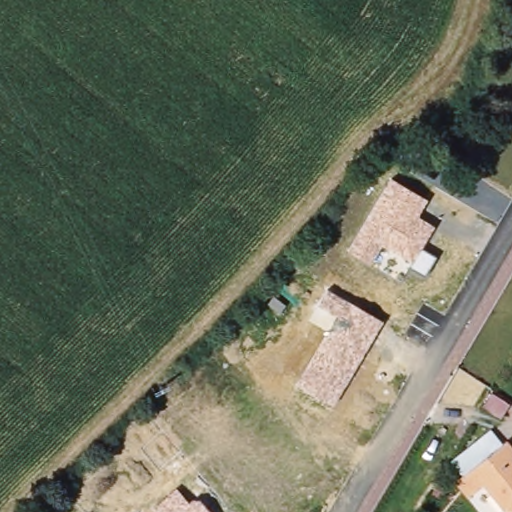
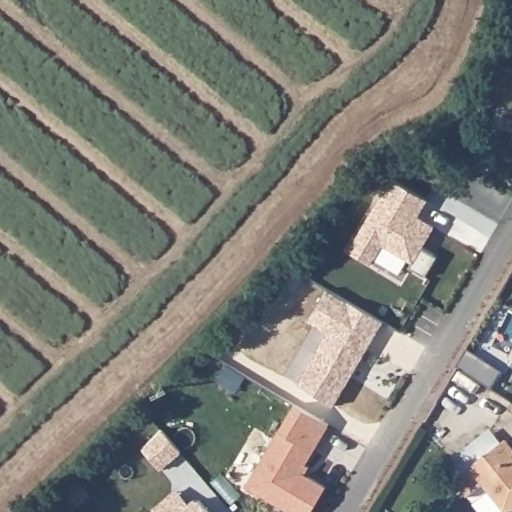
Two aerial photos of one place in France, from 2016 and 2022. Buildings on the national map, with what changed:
unchanged [(349,251),(392,179),(428,198),(417,216),(435,226),(422,249),(436,257),(426,275),(409,266),(411,261),(383,244),(370,265),(349,251)]
unchanged [(297,384),(337,317),(317,306),(325,289),(383,322),(332,407),(297,384)]
new [(469,348),(505,371),(494,388),(459,365),(469,348)]
new [(295,404),(330,425),(302,472),(327,487),(311,512),(291,512),(247,486),(295,404)]
unchanged [(512,507),(507,507),(473,466),(508,437),(512,442),(512,507)]
unchanged [(154,508),(179,488),(188,503),(198,499),(209,512),(156,512),(154,508)]

